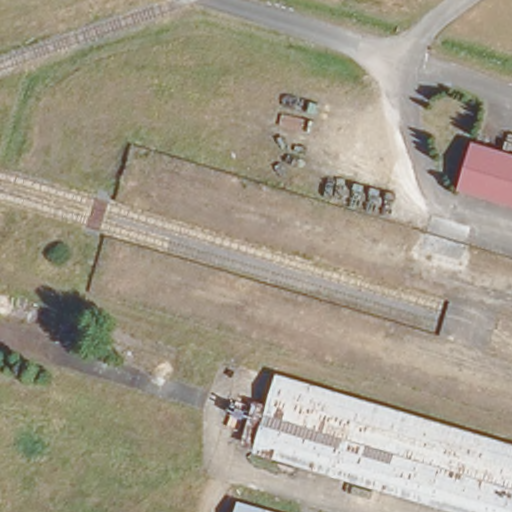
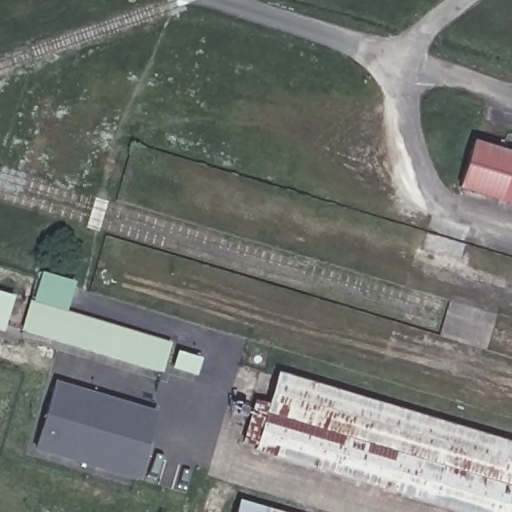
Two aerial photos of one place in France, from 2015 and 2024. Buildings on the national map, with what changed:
unchanged [(512,150),(512,202),(458,185),(474,139),(512,150)]
new [(0,330),(0,292),(13,296),(3,330),(0,330)]
new [(170,341),(160,373),(19,330),(29,300),(170,341)]
new [(170,368),(177,350),(202,358),(195,377),(170,368)]
unchanged [(470,512),(243,445),(251,395),(270,400),(279,372),(512,441),(512,512),(470,512)]
new [(155,412),(136,478),(35,448),(54,382),(155,412)]
unchanged [(287,512),(237,512),(244,497),(287,512)]

